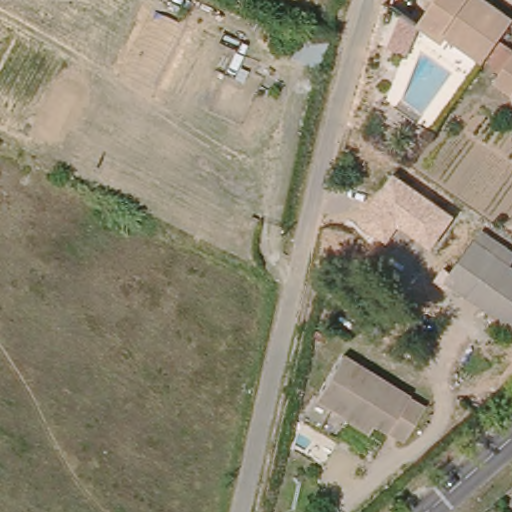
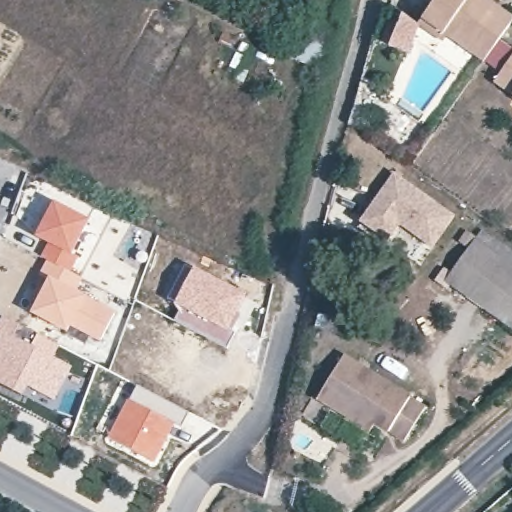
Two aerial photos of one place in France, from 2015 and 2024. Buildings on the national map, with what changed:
unchanged [(436,40),(416,26),(423,16),(434,0),(490,0),(512,16),(512,22),(490,53),(484,62),(443,32),(436,40)]
unchanged [(281,21),(274,42),(261,37),(269,16),(281,21)]
unchanged [(504,77),(512,66),(512,82),(504,77)]
unchanged [(394,172),(456,216),(432,249),(399,226),(387,243),(359,222),(394,172)]
new [(53,201),(91,218),(74,254),(78,256),(71,271),(45,260),(39,257),(46,243),(34,237),(53,201)]
unchanged [(468,293),(453,282),(483,238),(512,259),(512,323),(468,293)]
new [(47,277),(39,272),(45,260),(71,271),(83,277),(77,290),(116,310),(99,342),(70,327),(67,333),(30,313),(47,277)]
new [(193,271),(195,268),(247,296),(230,333),(180,309),(174,306),(176,303),(168,299),(186,266),(193,271)]
new [(180,309),(233,334),(226,348),(173,321),(180,309)]
new [(19,324),(14,335),(31,345),(38,333),(60,345),(54,357),(72,366),(54,401),(28,387),(23,396),(0,384),(0,321),(3,315),(19,324)]
unchanged [(319,388),(345,348),(426,399),(404,434),(376,417),(369,427),(347,414),(350,408),(319,388)]
new [(183,429),(176,424),(130,400),(138,386),(190,414),(183,429)]
new [(176,424),(154,464),(107,438),(128,399),(176,424)]

